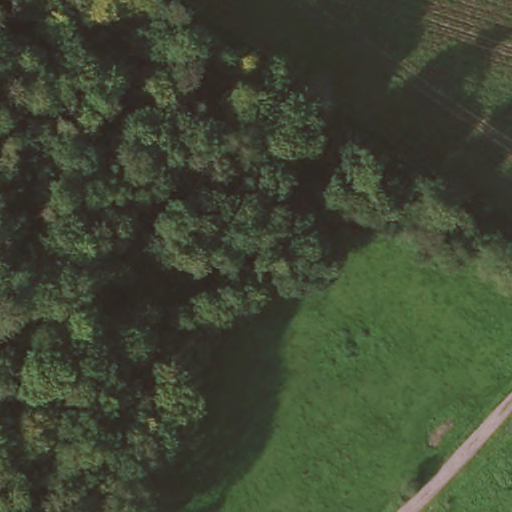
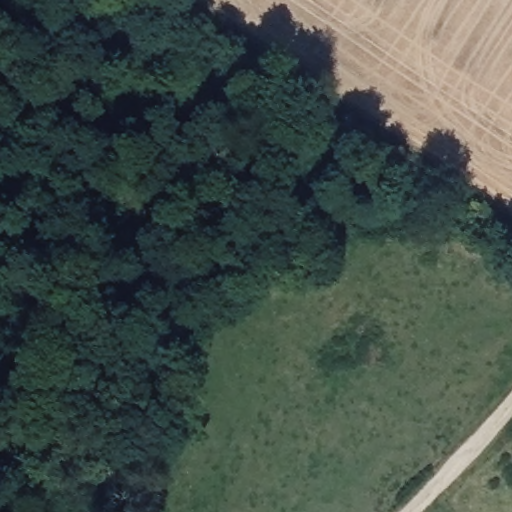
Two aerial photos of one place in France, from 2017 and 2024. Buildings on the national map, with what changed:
[]

